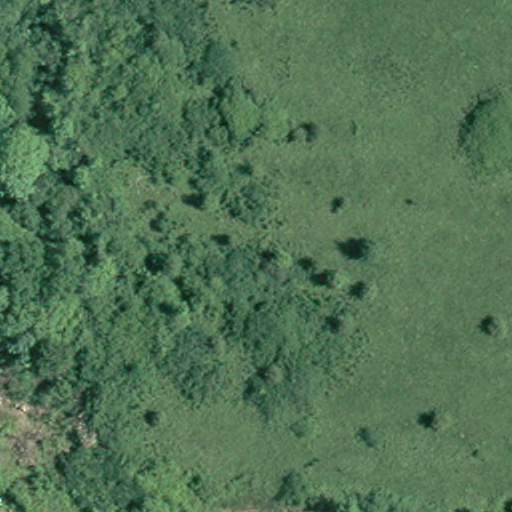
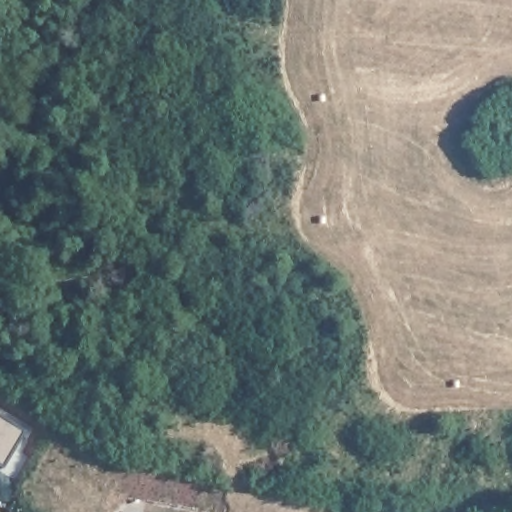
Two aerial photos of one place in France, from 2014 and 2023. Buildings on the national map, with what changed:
new [(9,467),(0,462),(0,412),(32,432),(9,467)]

